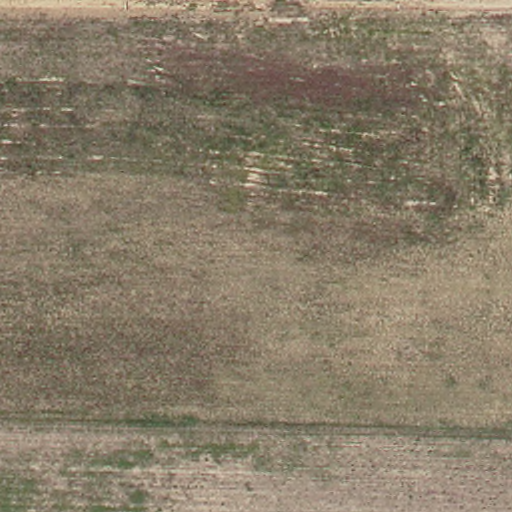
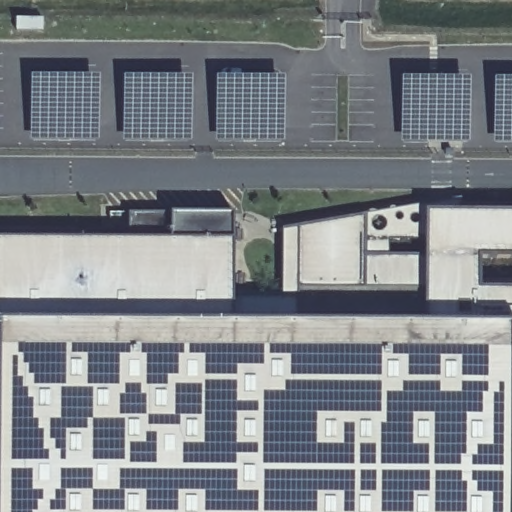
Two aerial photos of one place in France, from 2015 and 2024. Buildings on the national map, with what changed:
new [(31,75),(99,76),(98,140),(31,139),(31,75)]
new [(124,77),(191,77),(191,141),(124,141),(124,77)]
new [(216,78),(283,77),(284,141),(216,141),(216,78)]
new [(401,79),(468,79),(468,143),(401,143),(401,79)]
new [(512,80),(512,144),(494,144),(494,80),(512,80)]
new [(370,208),(464,193),(464,205),(428,205),(427,234),(369,234),(370,208)]
new [(427,234),(428,205),(462,205),(464,205),(463,212),(512,212),(512,257),(476,256),(477,288),(512,289),(512,327),(512,326),(510,512),(0,512),(0,237),(125,238),(128,212),(171,212),(234,212),(234,300),(281,297),(282,289),(285,289),(285,222),(300,220),(299,289),(300,226),(370,214),(369,234),(427,234)]

